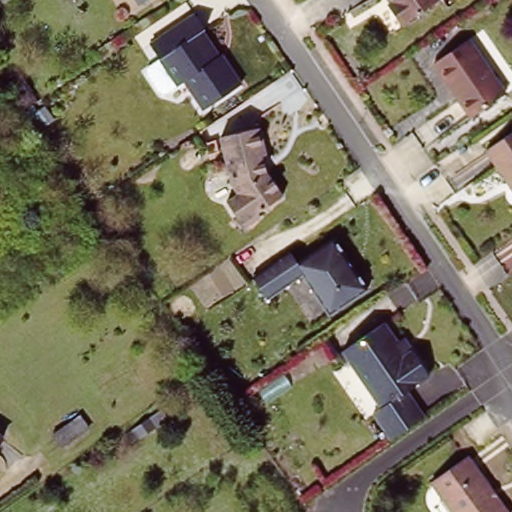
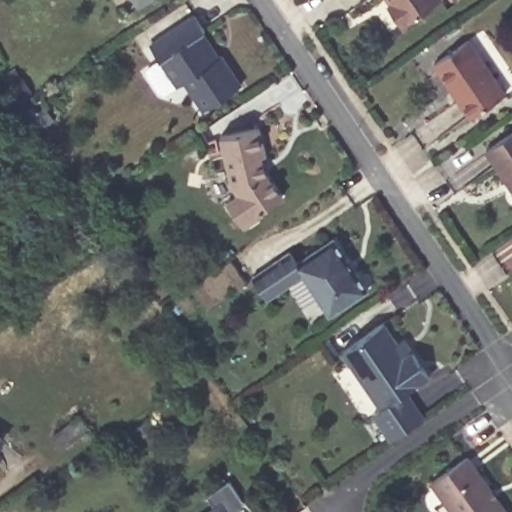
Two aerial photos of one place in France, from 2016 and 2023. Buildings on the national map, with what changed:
unchanged [(137,0),(145,0),(139,4),(137,0)]
unchanged [(388,1),(390,0),(433,0),(402,21),(388,1)]
unchanged [(184,76),(173,74),(151,40),(196,10),(206,25),(203,26),(216,46),(213,48),(217,53),(222,50),(242,80),(204,105),(184,76)]
unchanged [(469,45),(505,99),(470,123),(434,69),(469,45)]
unchanged [(512,132),(512,190),(486,151),(512,132)]
unchanged [(261,160),(257,161),(261,176),(278,201),(253,218),(256,222),(239,233),(221,207),(233,199),(228,193),(215,144),(255,134),(261,160)]
unchanged [(345,263),(341,266),(347,274),(351,272),(364,291),(324,316),(298,277),(263,301),(248,279),(286,253),(293,264),(329,240),(345,263)]
unchanged [(348,352),(389,324),(403,343),(409,339),(417,351),(434,376),(412,392),(429,418),(397,440),(378,414),(387,408),(348,352)]
unchanged [(63,448),(53,434),(79,417),(88,430),(63,448)]
unchanged [(471,453),(512,509),(512,512),(459,512),(435,480),(471,453)]
new [(214,506),(207,496),(229,481),(244,503),(229,512),(205,512),(214,506)]

